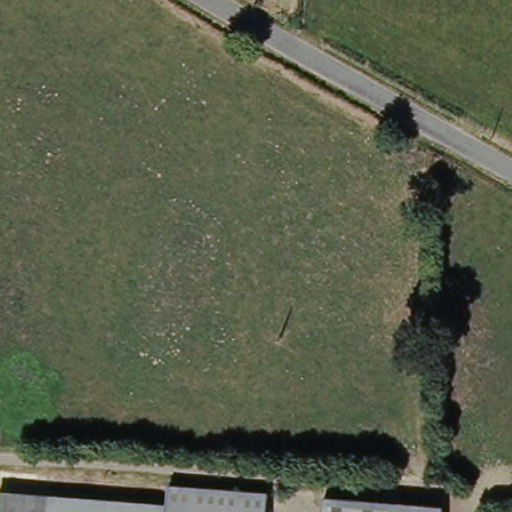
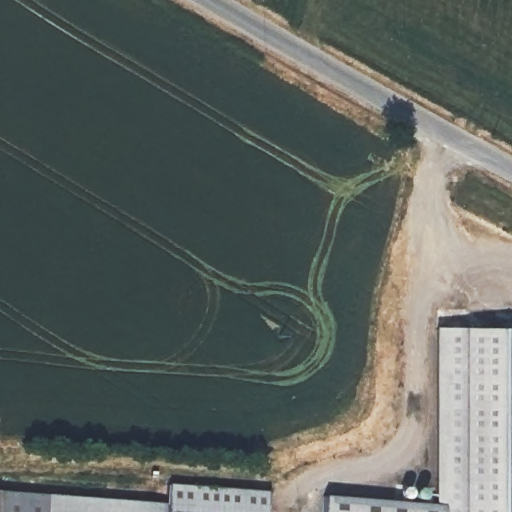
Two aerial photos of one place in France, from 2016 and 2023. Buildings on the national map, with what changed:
new [(325,493),(435,503),(436,328),(512,329),(512,512),(323,512),(325,493)]
new [(167,502),(169,485),(268,493),(267,512),(0,512),(0,490),(167,502)]
demolished [(167,509),(170,487),(269,494),(268,512),(0,512),(0,494),(167,509)]

